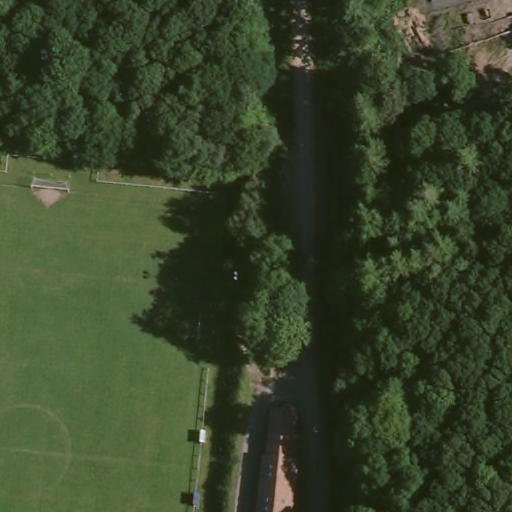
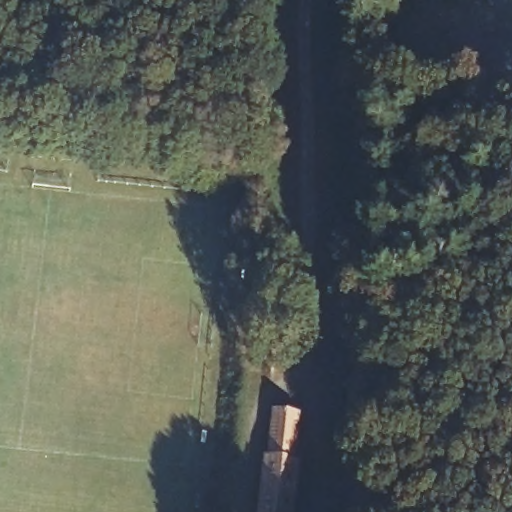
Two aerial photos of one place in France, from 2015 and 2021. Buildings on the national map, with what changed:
unchanged [(242,512),(248,461),(254,461),(259,415),(293,418),(288,466),(294,467),(289,512),(242,512)]

